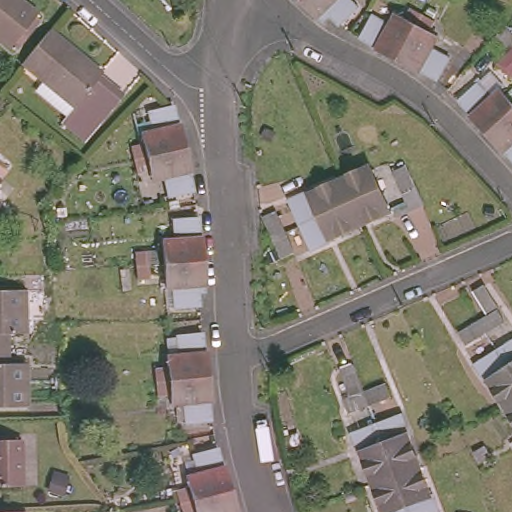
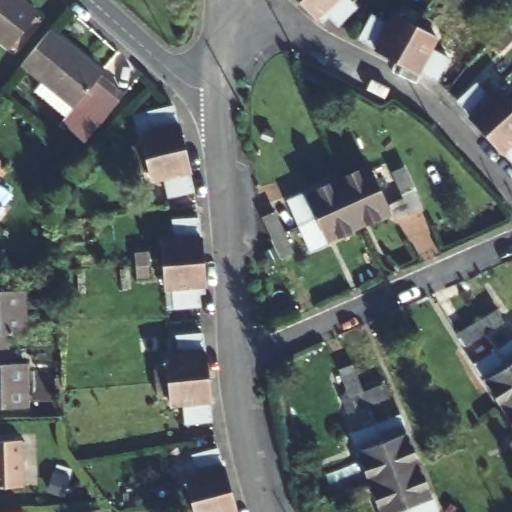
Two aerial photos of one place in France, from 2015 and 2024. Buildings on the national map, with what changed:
unchanged [(6,47),(0,42),(0,0),(20,0),(35,12),(6,47)]
unchanged [(330,14),(325,19),(320,14),(318,15),(304,0),(352,0),(356,5),(339,22),(330,14)]
unchanged [(426,72),(425,75),(403,63),(390,57),(383,52),(365,43),(376,19),(395,29),(401,17),(422,28),(443,39),(437,50),(454,60),(443,82),(426,72)]
unchanged [(48,34),(101,77),(99,79),(122,99),(100,127),(98,126),(82,144),(61,126),(73,111),(20,68),(48,34)]
unchanged [(505,62),(495,54),(512,35),(512,53),(505,62)]
unchanged [(493,56),(503,65),(485,87),(475,77),(493,56)]
unchanged [(494,147),(492,145),(478,129),(480,127),(465,112),(482,96),(497,111),(507,102),(512,106),(512,161),(510,164),(494,147)]
unchanged [(163,184),(152,186),(147,163),(141,141),(153,137),(150,119),(173,112),(179,132),(185,155),(190,177),(187,179),(192,197),(168,204),(163,184)]
unchanged [(408,192),(401,195),(396,183),(392,173),(398,170),(393,158),(400,156),(405,167),(410,177),(415,189),(420,199),(413,202),(408,192)]
unchanged [(300,227),(288,205),(310,195),(310,196),(340,182),(370,169),(380,191),(390,214),(360,227),(331,241),(332,244),(312,254),(300,227)]
unchanged [(275,262),(265,241),(255,221),(267,215),(277,236),(287,257),(275,262)]
unchanged [(198,311),(173,313),(171,293),(165,294),(164,271),(162,247),(173,246),(171,226),(195,224),(197,244),(200,243),(202,266),(202,267),(205,292),(205,297),(197,298),(198,311)]
unchanged [(23,305),(26,305),(27,331),(12,331),(12,346),(0,346),(0,288),(23,287),(23,305)]
unchanged [(457,329),(478,317),(497,306),(502,316),(485,327),(464,338),(457,329)]
unchanged [(504,403),(486,377),(485,378),(473,360),(496,345),(512,335),(512,416),(504,403)]
unchanged [(182,410),(170,411),(167,387),(165,364),(177,362),(176,340),(200,338),(202,360),(205,360),(207,377),(207,383),(210,407),(207,407),(209,427),(185,429),(182,410)]
unchanged [(13,362),(28,361),(30,387),(26,387),(26,403),(0,405),(0,346),(12,346),(13,362)]
unchanged [(340,402),(360,393),(381,385),(386,397),(365,406),(345,413),(340,402)]
unchanged [(357,456),(355,456),(348,435),(373,425),(398,415),(407,437),(405,437),(415,466),(427,496),(430,495),(438,512),(380,512),(368,485),(357,456)]
unchanged [(23,487),(0,489),(0,442),(21,441),(23,487)]
unchanged [(185,487),(196,485),(192,462),(216,457),(221,479),(224,478),(229,500),(230,502),(232,512),(191,512),(190,509),(185,487)]

